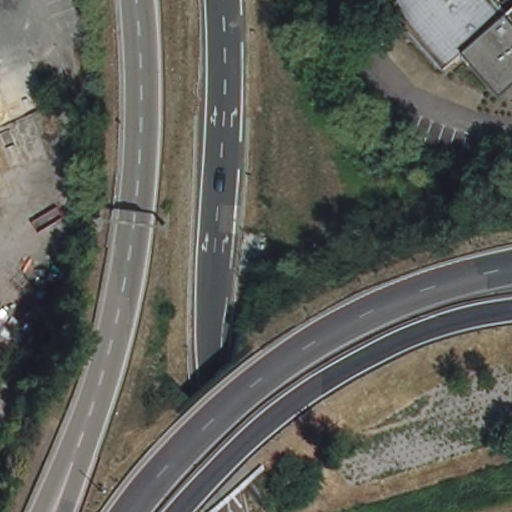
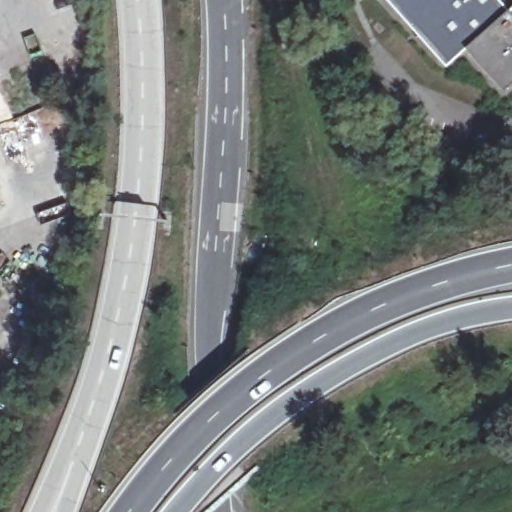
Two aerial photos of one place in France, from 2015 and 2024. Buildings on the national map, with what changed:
unchanged [(390,0),(450,0),(417,30),(390,0)]
unchanged [(450,0),(503,0),(512,10),(512,13),(470,50),(450,68),(417,30),(450,0)]
unchanged [(512,13),(512,91),(509,93),(470,50),(512,13)]

